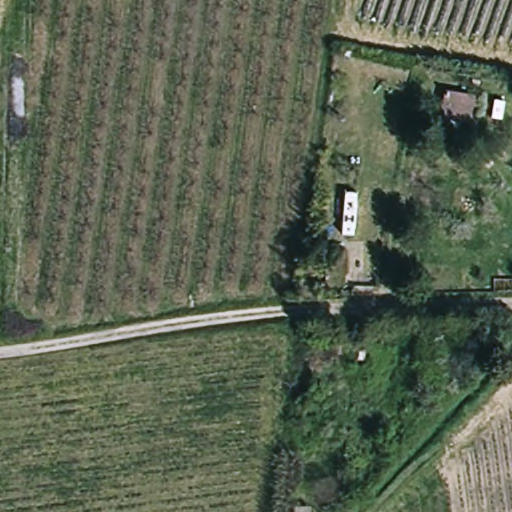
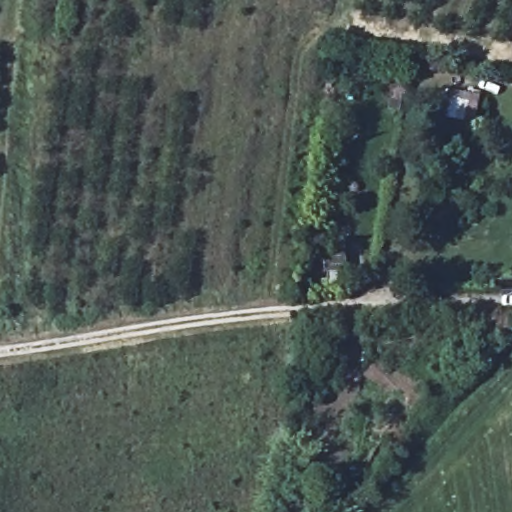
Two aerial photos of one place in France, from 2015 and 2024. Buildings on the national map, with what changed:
unchanged [(480,125),(449,121),(456,91),(486,95),(480,125)]

